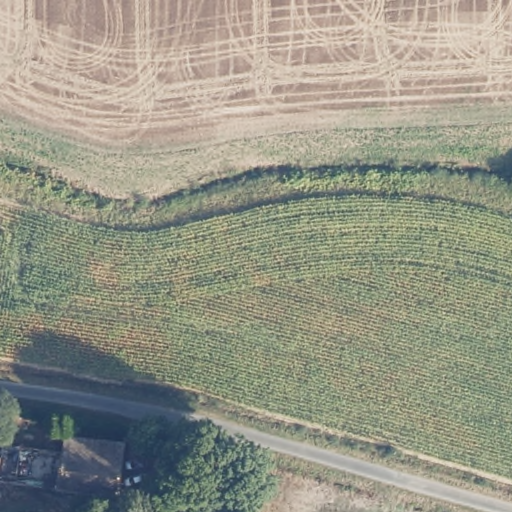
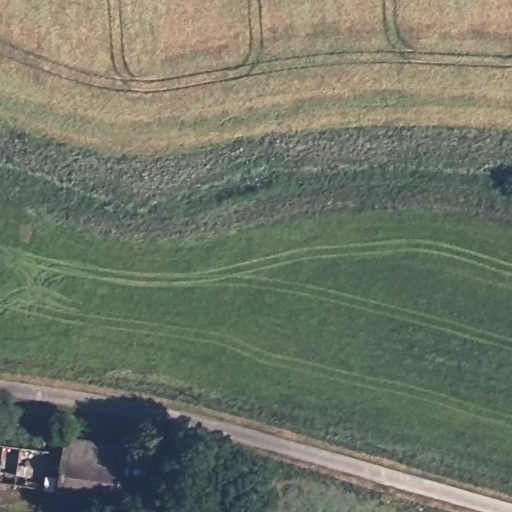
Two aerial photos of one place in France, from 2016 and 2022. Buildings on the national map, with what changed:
unchanged [(120,491),(60,482),(66,447),(68,432),(127,443),(120,491)]

